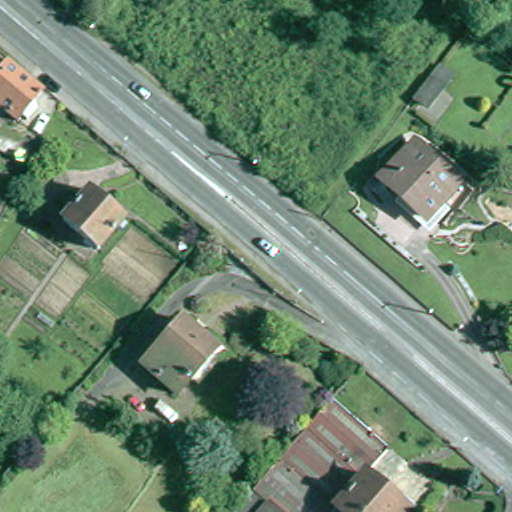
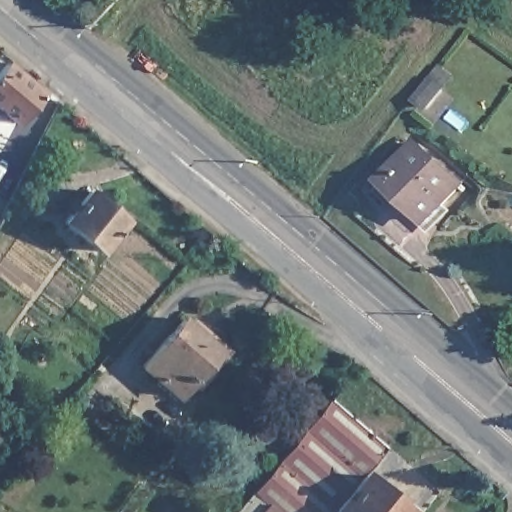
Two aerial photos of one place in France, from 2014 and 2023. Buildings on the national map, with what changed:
unchanged [(30,124),(25,130),(0,109),(0,61),(13,72),(15,70),(50,100),(40,112),(45,117),(35,129),(30,124)]
unchanged [(422,66),(434,74),(420,94),(407,85),(422,66)]
unchanged [(463,190),(432,225),(385,184),(417,149),(463,190)]
unchanged [(130,228),(103,257),(70,227),(75,220),(70,215),(78,208),(82,213),(96,198),(130,228)]
unchanged [(182,401),(147,371),(189,327),(222,357),(182,401)]
unchanged [(446,495),(432,512),(242,512),(339,403),(446,495)]

